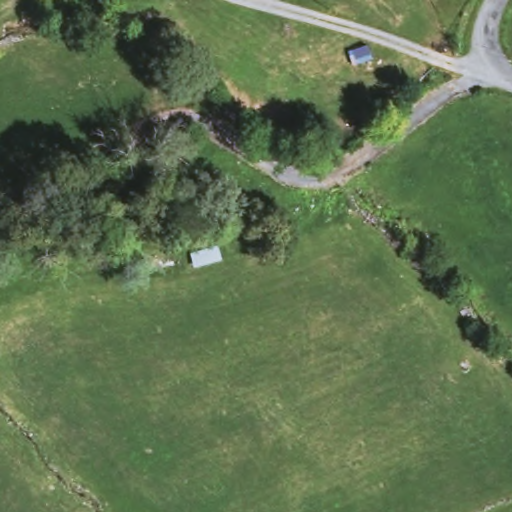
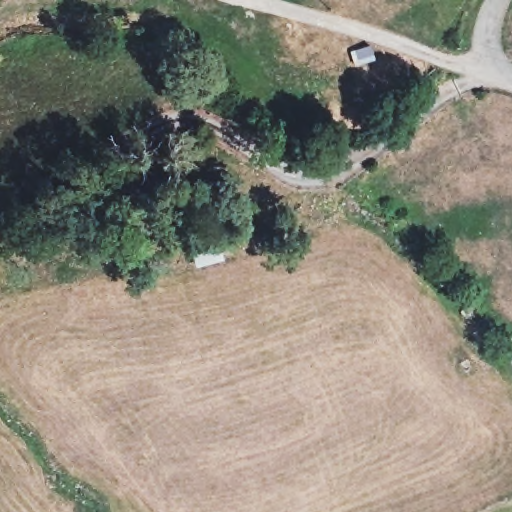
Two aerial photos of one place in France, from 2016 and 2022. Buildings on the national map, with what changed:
[]

